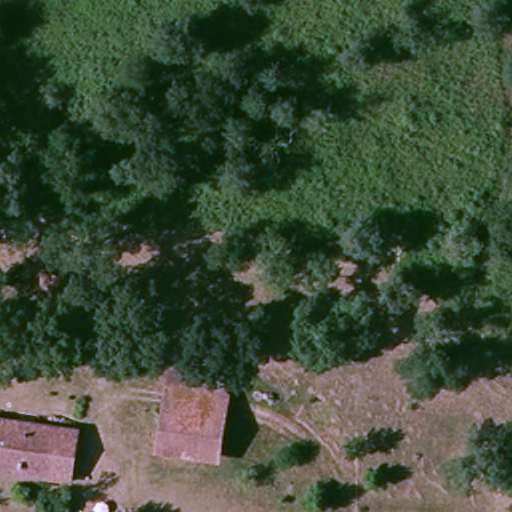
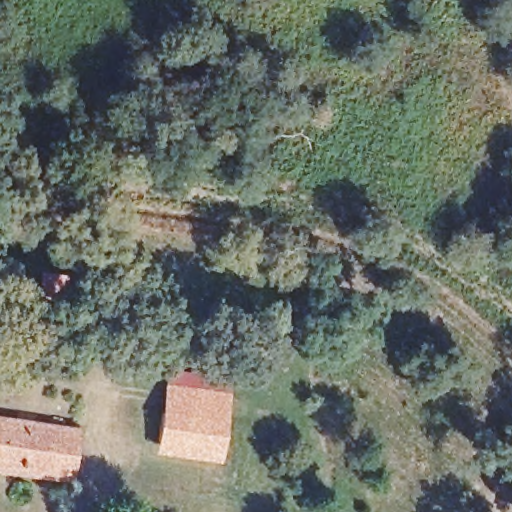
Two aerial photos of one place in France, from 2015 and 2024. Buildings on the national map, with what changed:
unchanged [(217,398),(216,445),(161,440),(159,396),(217,398)]
unchanged [(0,423),(67,432),(66,475),(0,467),(0,423)]

